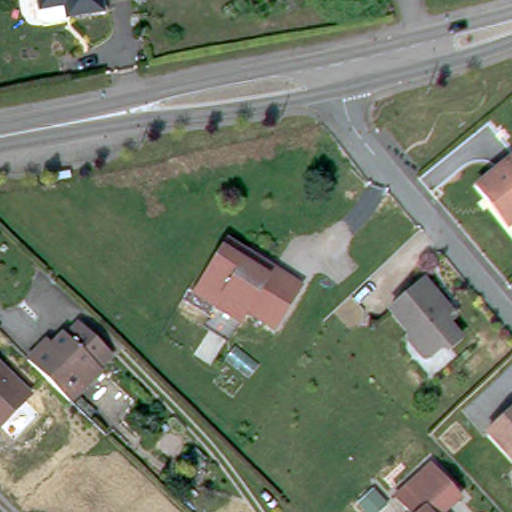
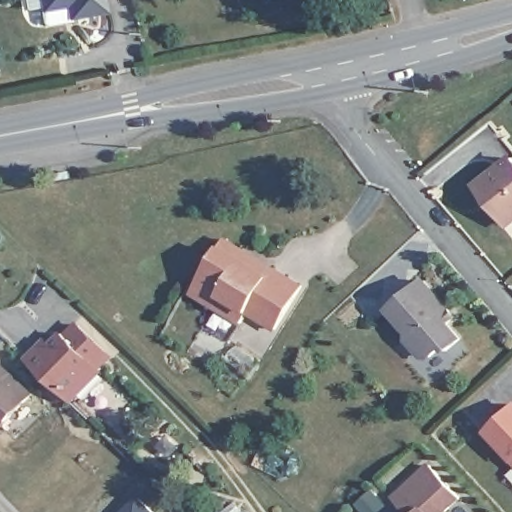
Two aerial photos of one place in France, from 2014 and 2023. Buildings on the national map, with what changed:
unchanged [(70,15),(41,20),(37,2),(42,1),(42,0),(101,0),(102,4),(69,10),(70,15)]
unchanged [(488,203),(476,189),(508,162),(512,166),(512,227),(510,229),(488,203)]
unchanged [(212,305),(189,291),(225,237),(239,245),(272,265),(280,270),(301,283),(297,289),(273,327),(245,310),(237,321),(212,305)]
unchanged [(427,277),(452,307),(455,311),(458,315),(454,317),(450,321),(462,336),(450,346),(446,341),(433,352),(422,350),(411,337),(412,327),(393,305),(427,277)]
unchanged [(23,359),(35,346),(42,340),(48,345),(60,333),(72,321),(108,356),(96,368),(65,400),(23,359)]
unchanged [(0,359),(30,388),(0,419),(0,359)]
unchanged [(491,432),(512,413),(512,453),(491,432)]
unchanged [(462,492),(441,512),(414,512),(395,492),(432,460),(462,492)]
new [(138,498),(152,512),(125,512),(138,498)]

